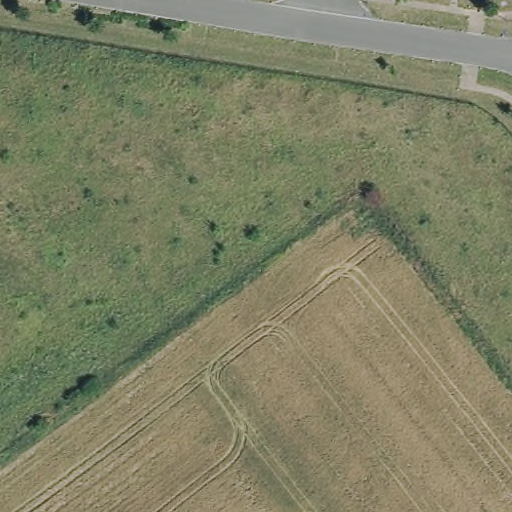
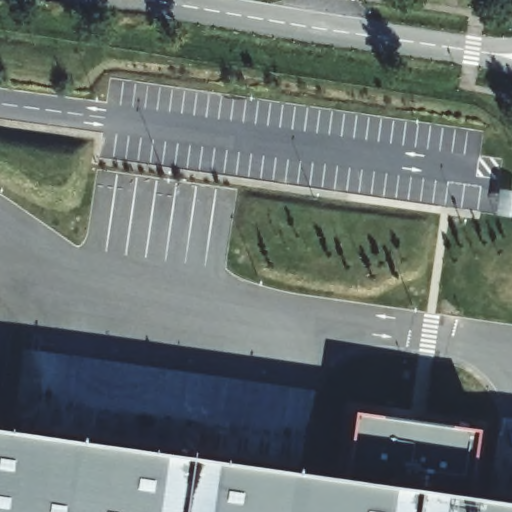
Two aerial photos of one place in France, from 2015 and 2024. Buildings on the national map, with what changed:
new [(355,410),(478,430),(469,497),(512,504),(512,512),(0,512),(0,431),(345,480),(355,410)]

